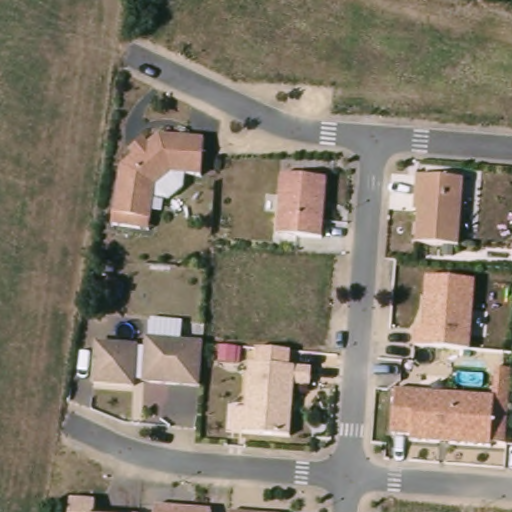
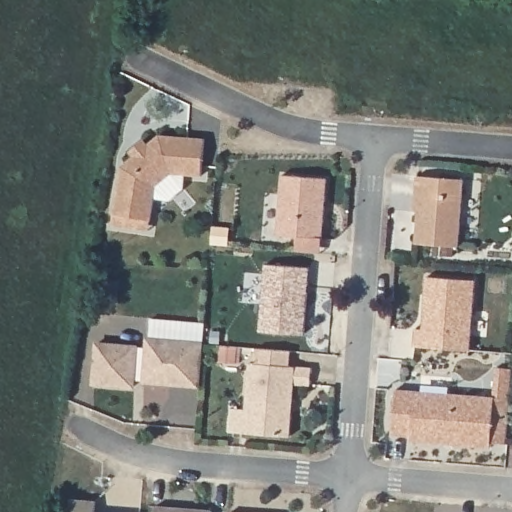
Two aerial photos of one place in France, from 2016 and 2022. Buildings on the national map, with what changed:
unchanged [(202,176),(173,175),(155,189),(150,230),(114,227),(119,166),(131,159),(127,154),(147,139),(151,144),(160,136),(203,140),(202,176)]
unchanged [(327,177),(323,239),(279,234),(282,173),(327,177)]
unchanged [(419,212),(414,212),(417,176),(466,180),(458,249),(416,245),(419,212)]
new [(266,264),(310,266),(304,336),(260,332),(266,264)]
unchanged [(476,281),(472,351),(412,345),(413,329),(423,330),(426,280),(476,281)]
unchanged [(146,337),(205,341),(201,387),(139,382),(138,388),(94,385),(96,340),(145,348),(146,337)]
unchanged [(290,440),(245,436),(250,367),(312,372),(311,389),(295,387),(290,440)]
unchanged [(494,367),(509,368),(504,446),(493,447),(410,442),(411,435),(394,436),(396,389),(491,395),(494,367)]
unchanged [(96,501),(95,512),(68,512),(70,499),(96,501)]
unchanged [(193,512),(156,512),(156,509),(193,512)]
unchanged [(229,512),(230,511),(246,512),(229,512)]

